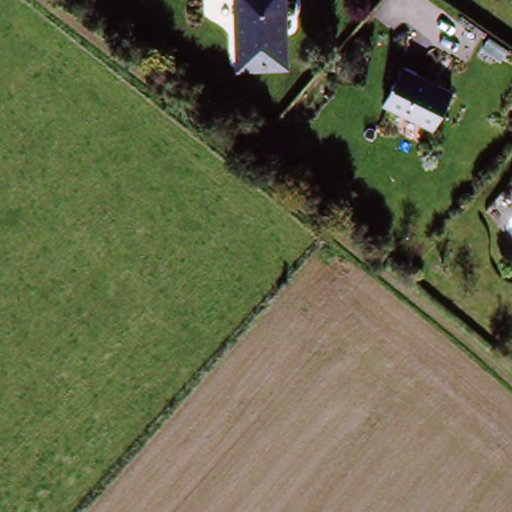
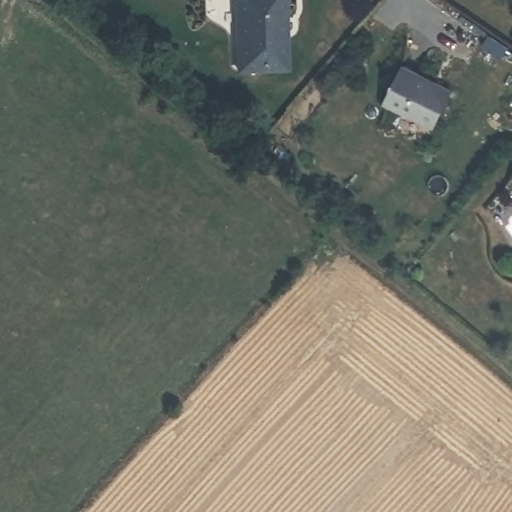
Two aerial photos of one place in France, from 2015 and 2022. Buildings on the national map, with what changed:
unchanged [(280,67),(231,69),(230,0),(279,0),(280,67)]
unchanged [(383,101),(401,65),(448,90),(430,125),(383,101)]

